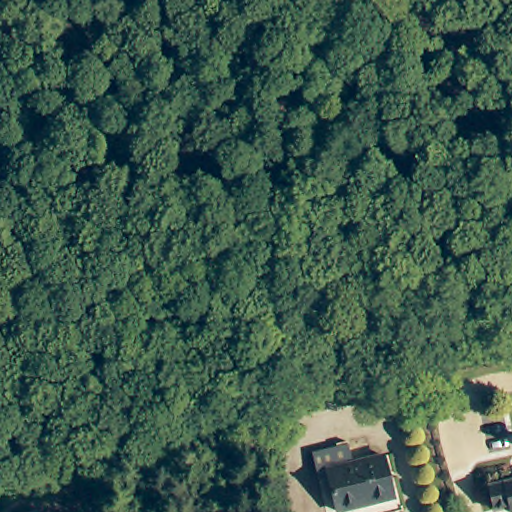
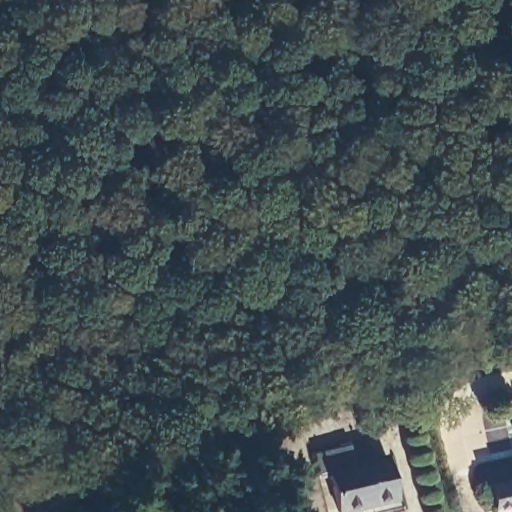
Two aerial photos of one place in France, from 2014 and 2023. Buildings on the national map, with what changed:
unchanged [(358,462),(387,456),(396,496),(340,508),(331,468),(322,470),(317,449),(354,442),(358,462)]
unchanged [(490,482),(512,478),(512,506),(496,510),(490,482)]

